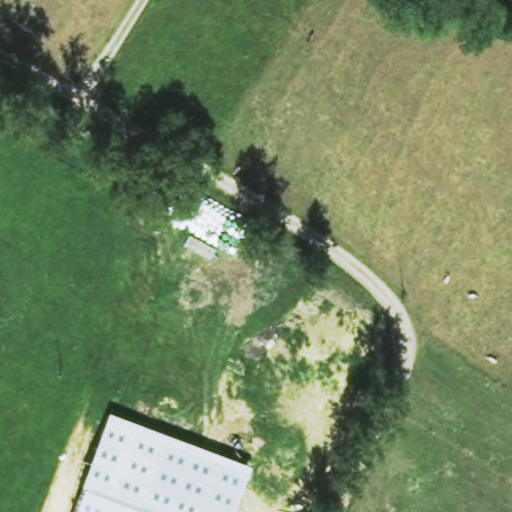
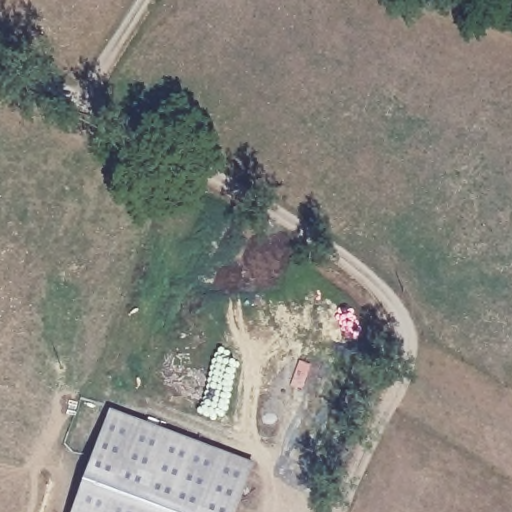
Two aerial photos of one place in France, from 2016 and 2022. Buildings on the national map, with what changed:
unchanged [(252,463),(234,512),(76,512),(112,412),(252,463)]

